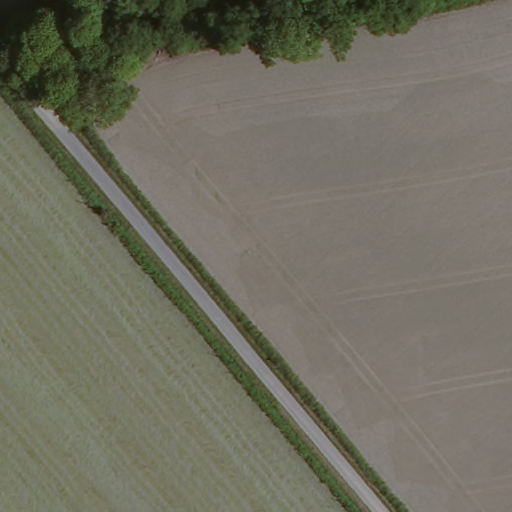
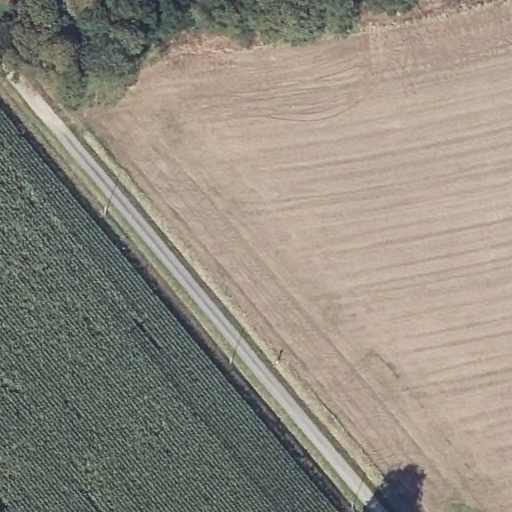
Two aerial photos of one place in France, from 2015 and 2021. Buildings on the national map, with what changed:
[]

